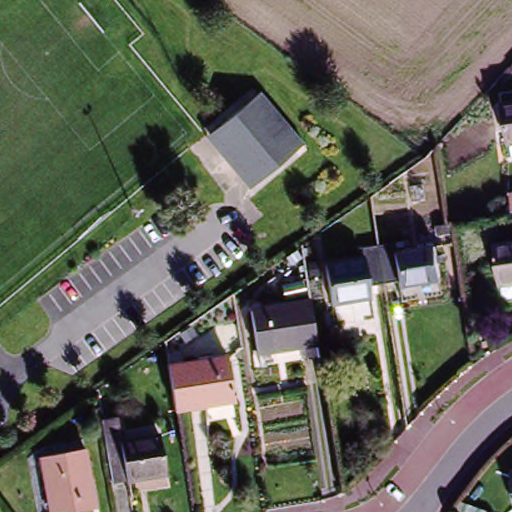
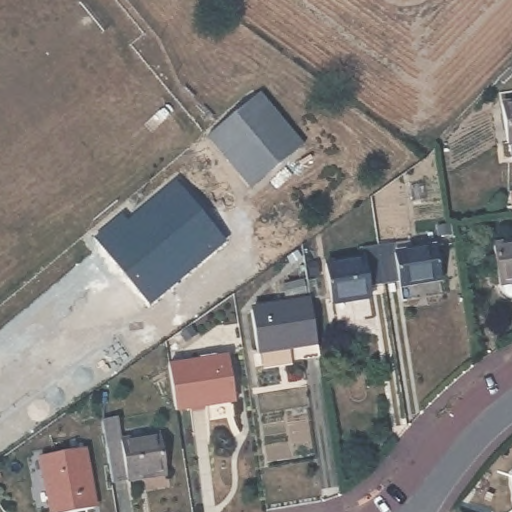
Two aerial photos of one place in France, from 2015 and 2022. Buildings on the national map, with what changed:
unchanged [(304,143),(254,186),(212,139),(259,95),(304,143)]
unchanged [(512,105),(512,141),(508,142),(505,107),(512,105)]
new [(97,239),(123,216),(127,220),(177,181),(225,242),(152,303),(97,239)]
unchanged [(512,244),(512,273),(502,275),(496,248),(512,244)]
unchanged [(433,246),(437,278),(402,285),(397,251),(433,246)]
unchanged [(362,256),(366,295),(335,301),(327,263),(362,256)]
unchanged [(308,299),(315,349),(255,359),(247,310),(308,299)]
unchanged [(228,357),(234,412),(208,416),(206,410),(178,415),(168,364),(228,357)]
unchanged [(156,438),(163,472),(128,477),(123,444),(156,438)]
unchanged [(94,509),(74,512),(46,512),(39,459),(87,450),(94,509)]
unchanged [(512,473),(512,482),(511,473),(512,473)]

